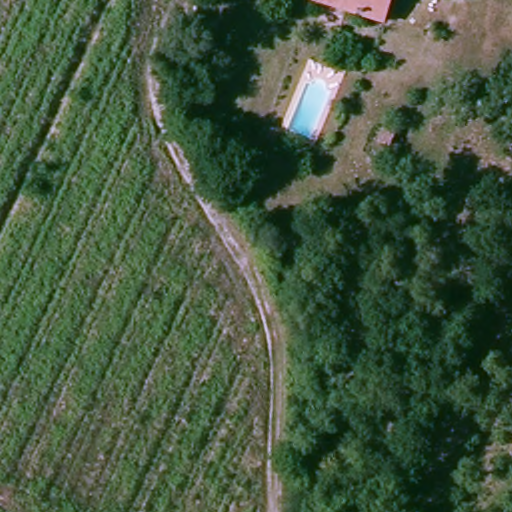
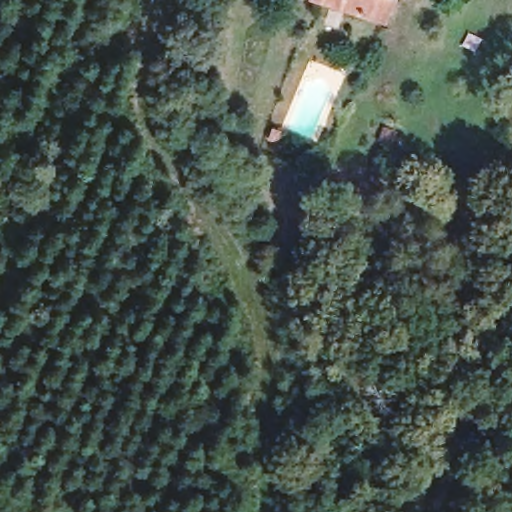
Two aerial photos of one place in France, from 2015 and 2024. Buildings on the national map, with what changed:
unchanged [(327,0),(393,0),(385,21),(327,0)]

